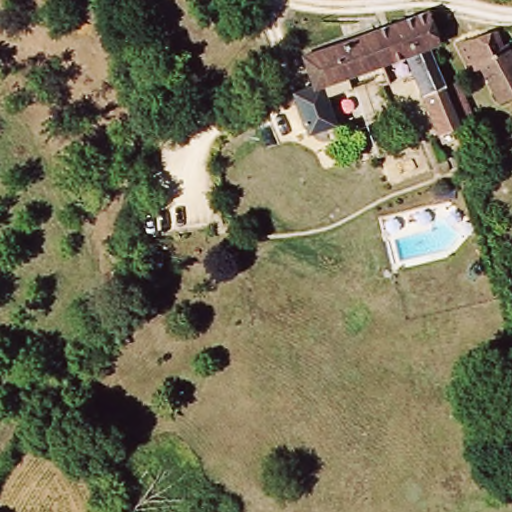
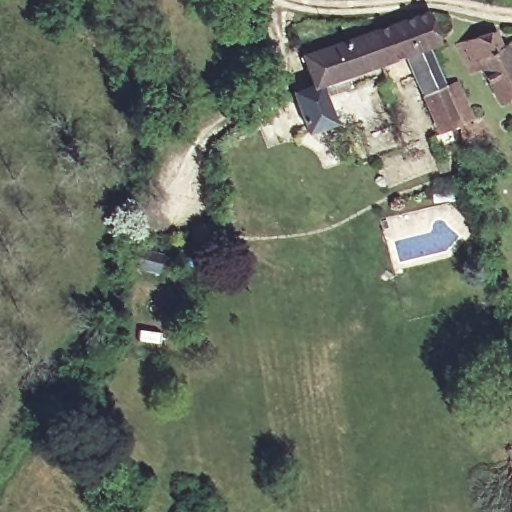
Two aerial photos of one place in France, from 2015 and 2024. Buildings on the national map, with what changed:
unchanged [(475,117),(460,126),(443,132),(412,56),(327,89),(339,117),(307,132),(297,107),(314,100),(302,67),(433,17),(440,42),(430,47),(444,82),(458,76),(475,117)]
unchanged [(499,50),(510,44),(512,48),(512,97),(501,104),(471,47),(495,37),(499,50)]

